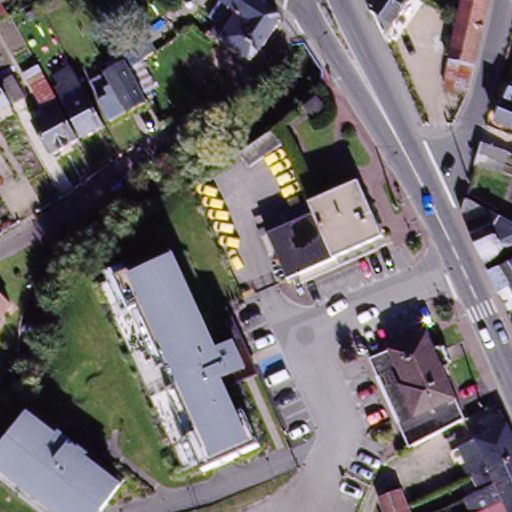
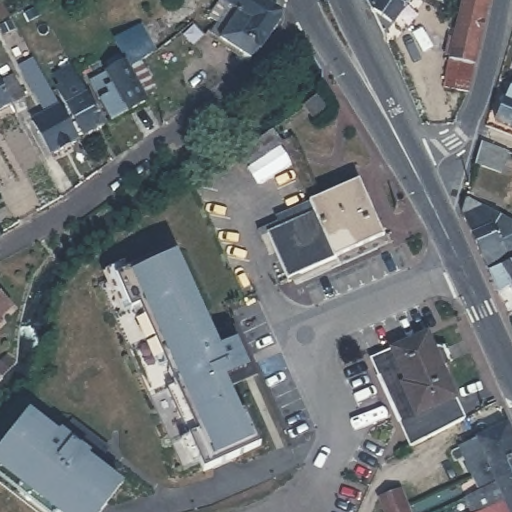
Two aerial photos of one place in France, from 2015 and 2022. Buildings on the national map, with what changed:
unchanged [(215,24),(207,19),(216,5),(218,1),(219,0),(255,0),(277,13),(277,22),(258,51),(245,60),(208,35),(215,24)]
unchanged [(394,24),(368,8),(365,0),(411,0),(394,24)]
unchanged [(451,57),(444,56),(447,40),(454,41),(458,20),(458,18),(460,10),(461,0),(487,0),(484,14),(483,16),(467,97),(444,92),(451,57)]
unchanged [(88,84),(105,75),(115,70),(104,50),(112,45),(110,41),(138,27),(152,52),(138,66),(152,91),(140,97),(145,105),(110,124),(98,102),(88,84)]
unchanged [(30,123),(43,114),(24,80),(35,73),(45,89),(56,108),(70,132),(77,143),(50,158),(30,123)]
unchanged [(10,75),(23,97),(10,104),(0,85),(0,81),(10,75)]
unchanged [(65,107),(73,103),(68,94),(77,89),(73,84),(77,82),(80,87),(85,96),(87,100),(90,106),(102,129),(82,139),(65,107)]
unchanged [(512,86),(512,134),(495,126),(512,86)]
unchanged [(312,92),(323,106),(313,115),(302,102),(312,92)]
unchanged [(2,96),(8,106),(0,111),(0,93),(2,96)]
unchanged [(270,125),(278,138),(245,161),(237,148),(270,125)]
unchanged [(497,152),(507,155),(502,176),(473,167),(481,147),(497,152)]
unchanged [(312,213),(307,202),(360,178),(386,234),(292,278),(288,280),(267,234),(271,232),(312,213)]
unchanged [(512,251),(487,266),(462,210),(465,193),(512,219),(512,251)]
unchanged [(495,286),(487,266),(512,251),(512,287),(508,280),(495,286)]
unchanged [(167,255),(248,437),(210,454),(129,272),(167,255)]
unchanged [(6,313),(0,318),(0,305),(6,313)]
unchanged [(430,347),(435,345),(441,349),(447,362),(445,367),(440,369),(454,403),(411,419),(398,387),(402,386),(389,351),(426,336),(430,347)]
unchanged [(368,362),(389,351),(402,386),(398,387),(411,419),(454,403),(462,420),(408,447),(368,362)]
unchanged [(73,421),(110,448),(98,465),(123,484),(102,512),(39,512),(0,482),(0,451),(28,412),(61,437),(73,421)]
unchanged [(474,496),(480,493),(472,477),(475,476),(461,445),(508,423),(512,431),(512,512),(471,512),(465,500),(474,496)]
unchanged [(403,493),(410,509),(411,512),(386,512),(382,502),(403,493)]

